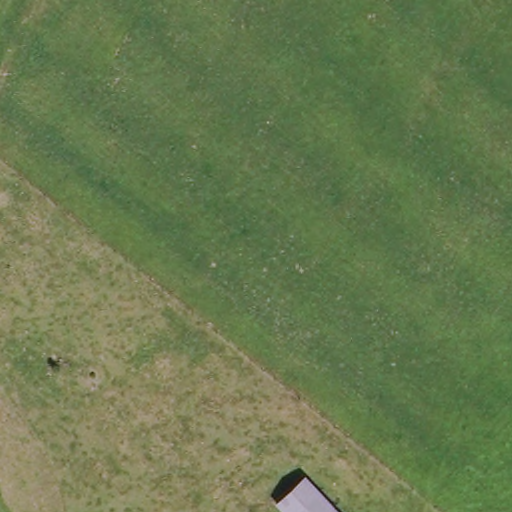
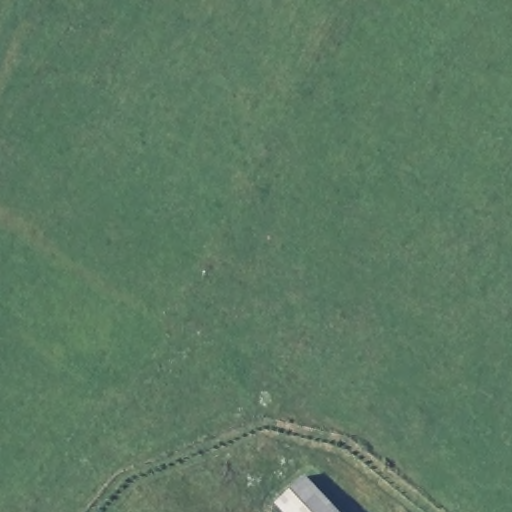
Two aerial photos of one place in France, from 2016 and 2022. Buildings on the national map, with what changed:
unchanged [(274,500),(302,473),(338,512),(284,512),(274,500)]

